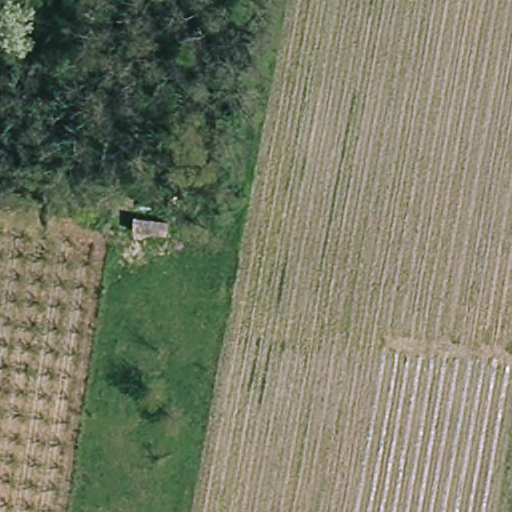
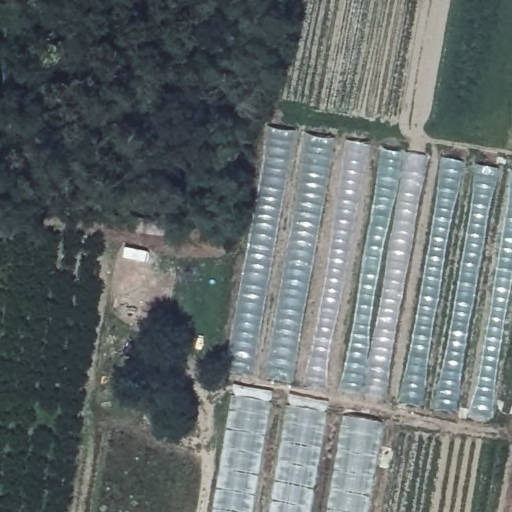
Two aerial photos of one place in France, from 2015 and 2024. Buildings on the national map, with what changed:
new [(253,378),(223,374),(267,128),(297,131),(253,378)]
new [(265,378),(306,134),(334,140),(292,383),(265,378)]
new [(329,392),(303,386),(346,142),(371,147),(329,392)]
new [(341,388),(384,149),(426,157),(383,396),(341,388)]
new [(421,407),(398,402),(442,159),(465,163),(421,407)]
new [(432,407),(476,165),(500,168),(456,411),(432,407)]
new [(512,171),(512,304),(493,418),(469,414),(511,171),(512,171)]
new [(231,396),(384,424),(369,512),(212,512),(231,396)]

